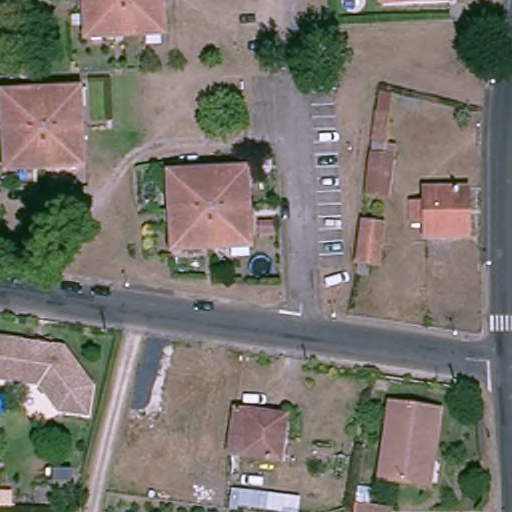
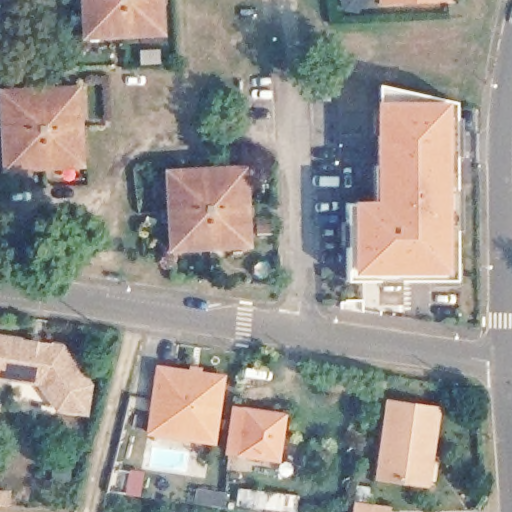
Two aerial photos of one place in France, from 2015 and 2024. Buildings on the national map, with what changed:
unchanged [(164,0),(165,31),(89,33),(87,0),(164,0)]
unchanged [(383,0),(428,0),(383,1),(383,0)]
new [(454,101),(454,278),(346,281),(347,204),(352,203),(352,201),(374,201),(376,103),(377,83),(454,101)]
unchanged [(0,87),(79,84),(82,162),(2,165),(0,87)]
demolished [(374,144),(384,145),(384,153),(392,154),(386,191),(367,188),(374,144)]
unchanged [(178,246),(173,168),(249,166),(252,244),(178,246)]
demolished [(427,227),(426,216),(413,215),(413,193),(427,193),(427,181),(468,183),(468,228),(427,227)]
demolished [(389,216),(378,275),(359,271),(368,212),(389,216)]
unchanged [(86,387),(81,411),(51,406),(39,378),(0,369),(0,331),(31,338),(42,340),(60,343),(86,387)]
demolished [(162,402),(140,397),(154,343),(155,342),(167,345),(178,348),(162,402)]
new [(226,375),(217,444),(147,434),(156,364),(226,375)]
unchanged [(418,483),(374,476),(386,400),(437,409),(434,427),(427,484),(418,483)]
unchanged [(229,452),(233,426),(236,409),(240,409),(288,418),(281,461),(241,454),(232,453),(229,452)]
unchanged [(194,484),(226,488),(225,508),(191,503),(194,484)]
unchanged [(353,501),(392,507),(392,512),(351,512),(353,501)]

